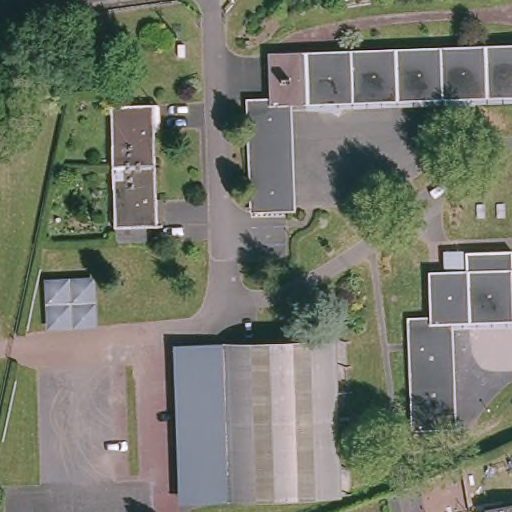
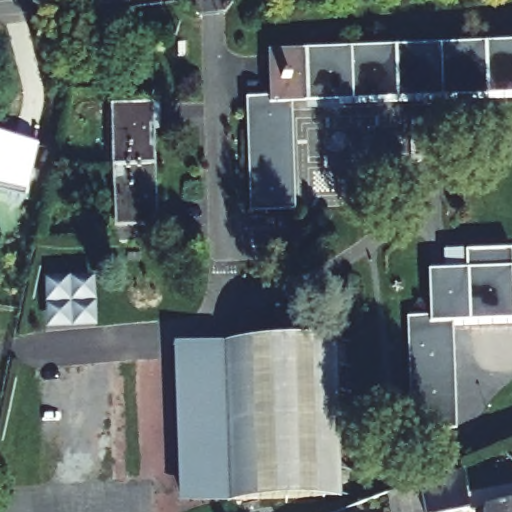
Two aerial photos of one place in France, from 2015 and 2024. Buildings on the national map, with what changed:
unchanged [(512,44),(512,92),(290,100),(272,100),(271,52),(512,44)]
unchanged [(294,206),(288,207),(287,175),(252,176),(249,101),(272,100),(290,100),(294,206)]
unchanged [(110,104),(157,102),(158,116),(153,117),(155,164),(112,165),(110,104)]
new [(37,144),(29,196),(0,189),(0,137),(37,144)]
unchanged [(156,209),(162,209),(162,224),(114,225),(112,165),(155,164),(156,209)]
unchanged [(287,175),(288,207),(252,208),(252,176),(287,175)]
unchanged [(512,268),(512,316),(452,318),(435,319),(433,271),(512,268)]
unchanged [(97,328),(45,330),(42,279),(97,277),(97,328)]
unchanged [(410,320),(435,319),(452,318),(455,425),(450,425),(449,393),(413,395),(410,320)]
unchanged [(230,352),(229,342),(331,337),(339,491),(237,496),(236,485),(185,487),(177,355),(230,352)]
unchanged [(449,393),(450,425),(415,426),(413,395),(449,393)]
unchanged [(480,505),(512,500),(512,512),(482,512),(480,505)]

